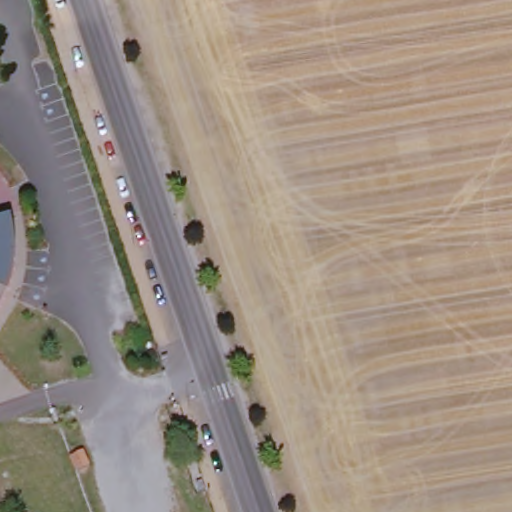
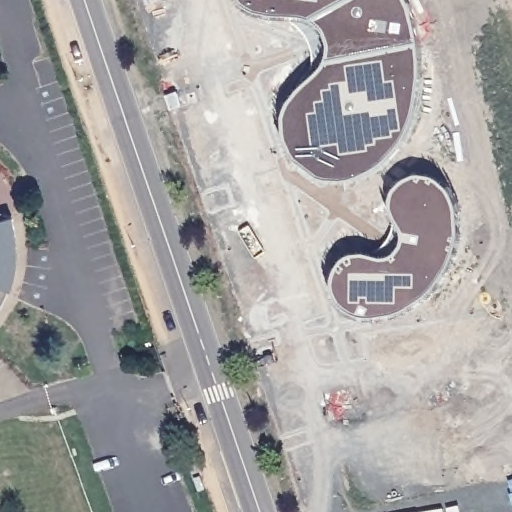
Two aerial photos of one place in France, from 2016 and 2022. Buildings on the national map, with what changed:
new [(294,156),(288,146),(285,134),(284,123),(287,111),(307,86),(317,77),(327,64),(331,48),(327,34),(312,22),(300,19),(272,18),(251,11),(240,0),(409,0),(414,10),(421,46),(423,69),(422,95),(413,128),(400,150),(382,167),(360,179),(347,182),(329,182),(321,180),(330,167),(306,150),(297,162),(294,156)]
new [(422,176),(438,179),(454,194),(460,213),(462,226),(460,248),(454,263),(447,275),(430,296),(422,303),(415,307),(401,312),(382,316),(361,317),(354,315),(347,311),(341,306),(337,298),(334,288),(334,282),(338,271),(345,261),(350,257),(354,256),(367,257),(385,262),(391,260),(397,255),(404,247),(405,241),(405,238),(399,223),(396,219),(393,207),(394,199),(395,195),(401,187),(408,180),(417,177),(422,176)]
unchanged [(16,259),(15,269),(14,279),(11,289),(7,298),(3,307),(0,313),(0,217),(10,221),(12,221),(14,229),(16,239),(17,249),(16,259)]

